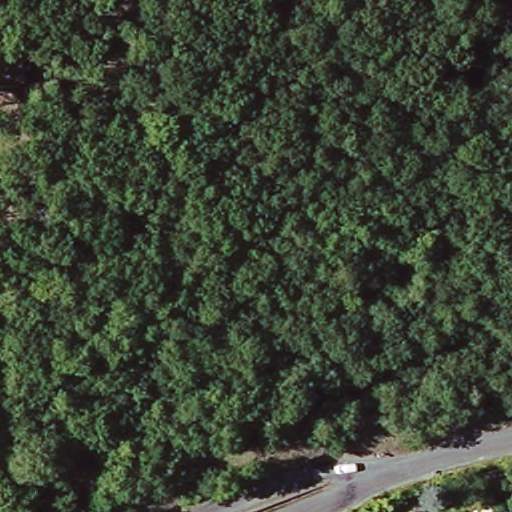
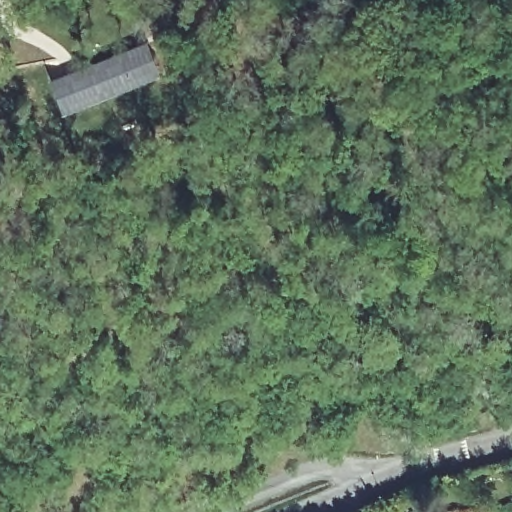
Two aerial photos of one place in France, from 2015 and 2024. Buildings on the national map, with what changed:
new [(153,43),(165,74),(152,79),(150,76),(82,102),(83,105),(70,110),(57,79),(153,43)]

